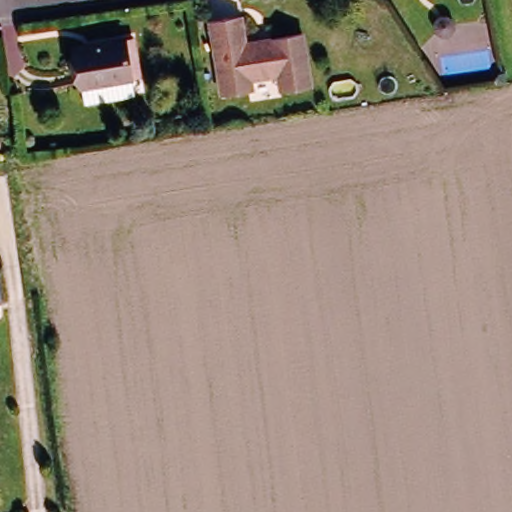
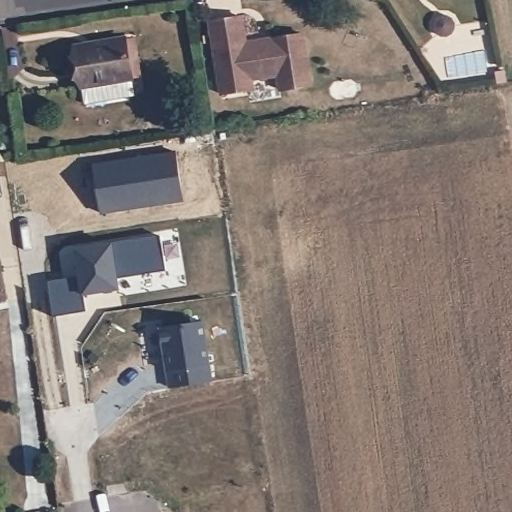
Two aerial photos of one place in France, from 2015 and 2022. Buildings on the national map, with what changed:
unchanged [(240,21),(245,55),(272,51),(270,43),(300,40),(308,90),(276,95),(275,80),(249,84),(250,95),(217,101),(208,27),(240,21)]
unchanged [(116,35),(122,75),(73,85),(67,44),(116,35)]
new [(99,196),(90,192),(87,174),(94,167),(94,164),(177,151),(184,199),(101,212),(99,196)]
new [(81,277),(77,250),(162,236),(167,270),(118,278),(120,288),(85,293),(87,311),(53,316),(47,282),(81,277)]
new [(212,381),(170,387),(162,326),(202,320),(212,381)]

